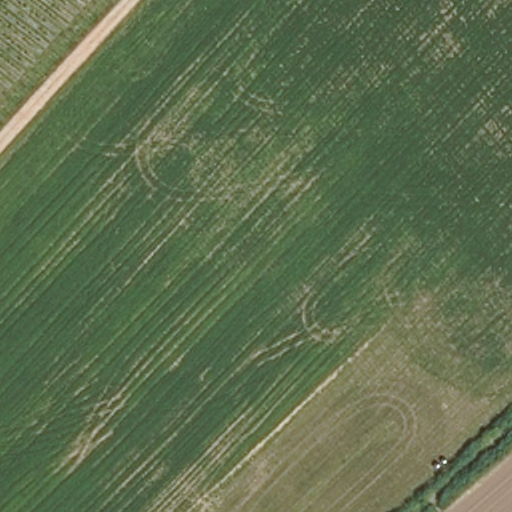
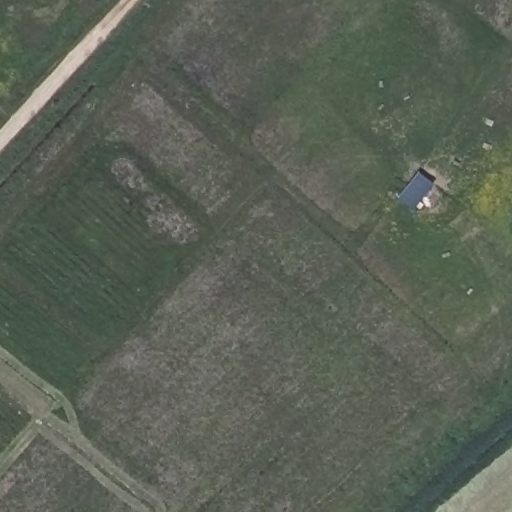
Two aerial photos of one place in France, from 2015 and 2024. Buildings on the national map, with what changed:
[]

